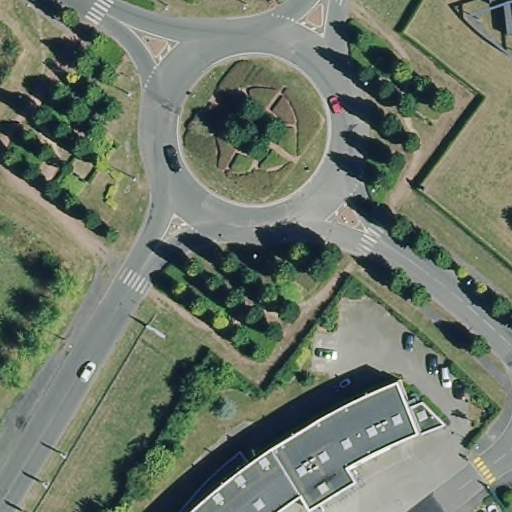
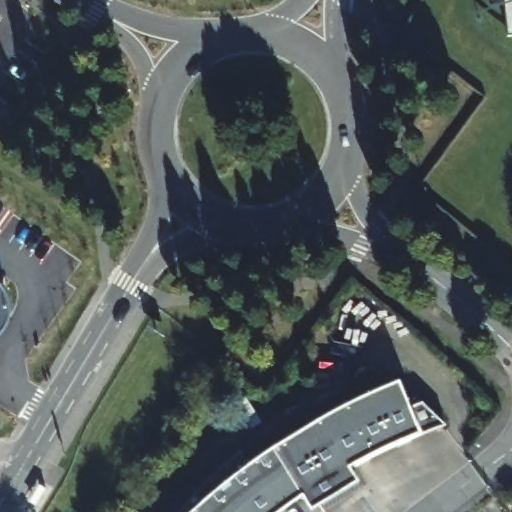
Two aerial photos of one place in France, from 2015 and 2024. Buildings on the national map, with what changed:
unchanged [(506,38),(505,10),(496,12),(495,0),(512,0),(512,37),(506,38)]
new [(7,299),(10,312),(8,321),(4,330),(0,335),(0,287),(2,289),(7,299)]
unchanged [(405,442),(391,448),(375,456),(364,461),(351,468),(345,472),(353,485),(314,508),(306,495),(298,499),(280,512),(177,512),(190,496),(205,481),(221,466),(235,454),(245,466),(259,456),(275,445),(291,435),(312,422),(333,411),(362,396),(394,382),(405,410),(416,405),(440,428),(421,436),(405,442)]

